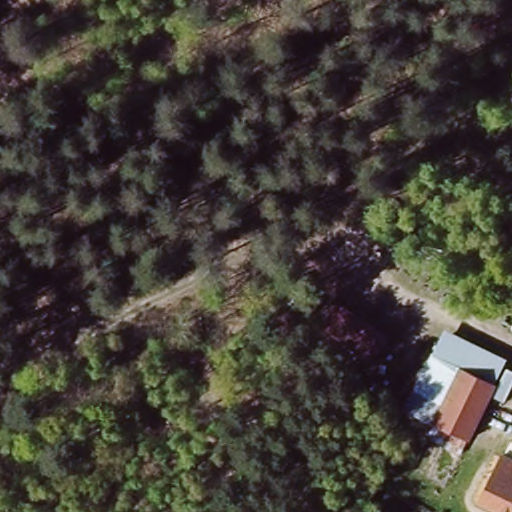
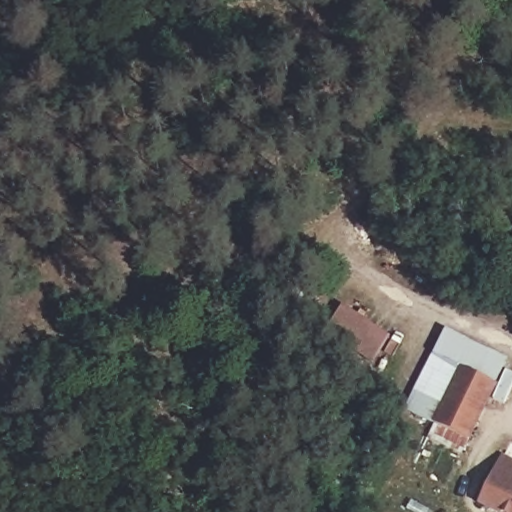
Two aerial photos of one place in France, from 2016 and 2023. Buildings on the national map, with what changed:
unchanged [(447,334),(509,365),(459,458),(429,447),(435,431),(405,416),(447,334)]
unchanged [(488,500),(510,452),(512,453),(512,511),(488,500)]

